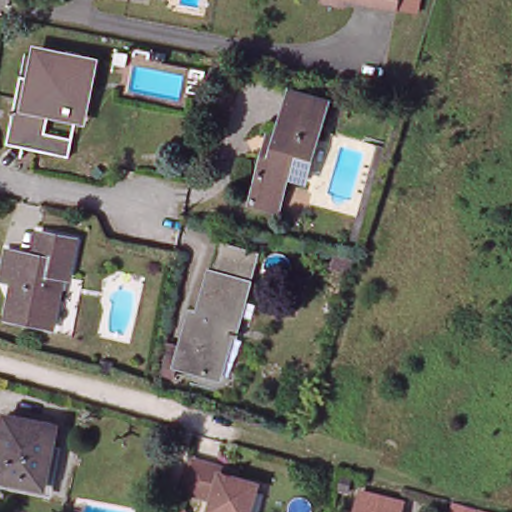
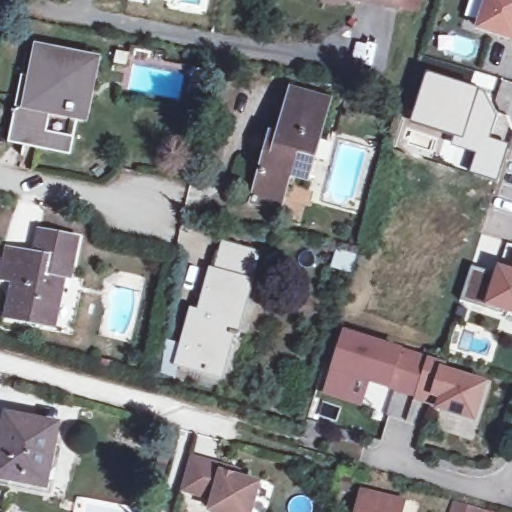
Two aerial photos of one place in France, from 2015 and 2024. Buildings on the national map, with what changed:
unchanged [(375,0),(395,0),(395,4),(375,0)]
new [(487,0),(512,0),(512,39),(478,28),(487,0)]
unchanged [(120,51),(133,54),(131,65),(118,64),(120,51)]
unchanged [(46,131),(73,136),(70,156),(35,150),(37,139),(24,136),(22,147),(5,144),(23,54),(87,66),(78,110),(51,106),(46,131)]
new [(481,94),(492,117),(483,138),(507,149),(495,177),(475,170),(482,149),(456,140),(460,129),(418,114),(430,77),(481,94)]
unchanged [(253,203),(257,190),(268,150),(272,135),(280,137),(292,92),(332,102),(310,180),(292,175),(286,198),(282,211),(253,203)]
unchanged [(12,300),(17,282),(5,280),(10,250),(37,255),(42,232),(79,240),(71,279),(63,277),(60,289),(62,290),(55,326),(18,320),(8,318),(12,300)]
unchanged [(165,375),(170,340),(185,345),(192,320),(200,322),(213,273),(217,273),(225,245),(259,254),(237,333),(232,332),(220,377),(180,365),(177,378),(165,375)]
unchanged [(337,254),(356,259),(352,270),(335,265),(337,254)]
new [(505,262),(512,264),(512,303),(511,303),(509,307),(467,293),(478,259),(503,267),(505,262)]
new [(357,392),(335,386),(353,326),(435,352),(423,388),(377,373),(370,396),(357,392)]
new [(423,388),(435,352),(452,358),(450,363),(493,377),(482,413),(445,401),(448,391),(442,389),(439,397),(422,391),(423,388)]
unchanged [(102,360),(114,362),(112,372),(100,368),(102,360)]
unchanged [(19,415),(70,425),(58,486),(7,476),(19,415)]
unchanged [(252,512),(212,512),(214,500),(185,492),(193,460),(225,468),(237,472),(236,478),(259,485),(252,512)]
unchanged [(343,475),(353,477),(350,492),(340,490),(343,475)]
unchanged [(363,497),(405,508),(404,512),(360,512),(363,497)]
unchanged [(459,502),(482,509),(492,512),(456,512),(459,502)]

